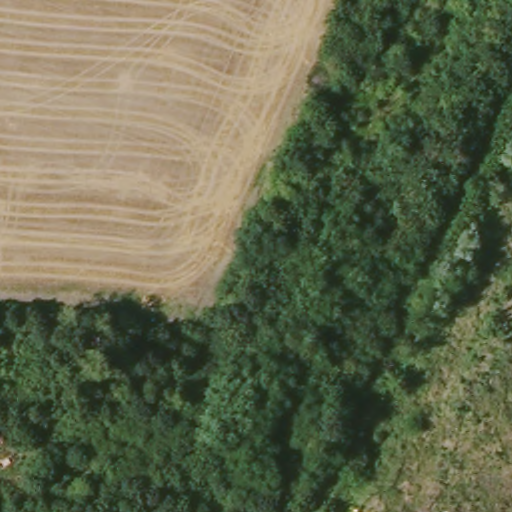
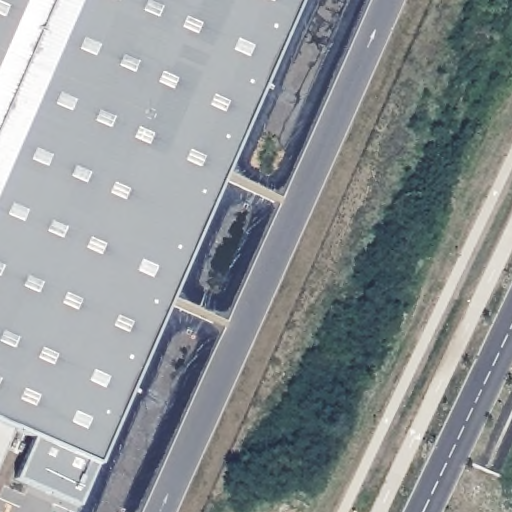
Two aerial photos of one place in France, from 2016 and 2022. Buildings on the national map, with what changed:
new [(77,506),(16,479),(32,438),(0,424),(0,0),(299,0),(95,466),(77,506)]

